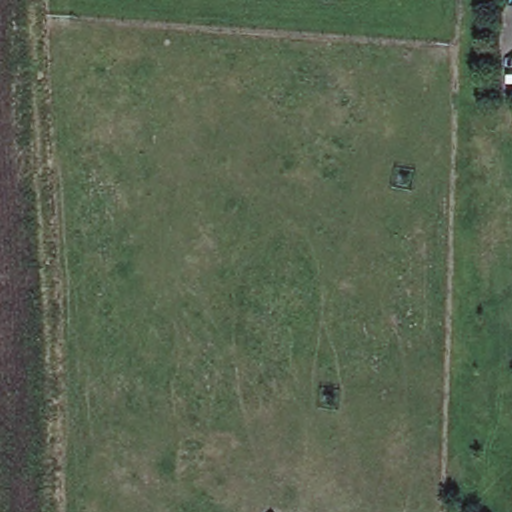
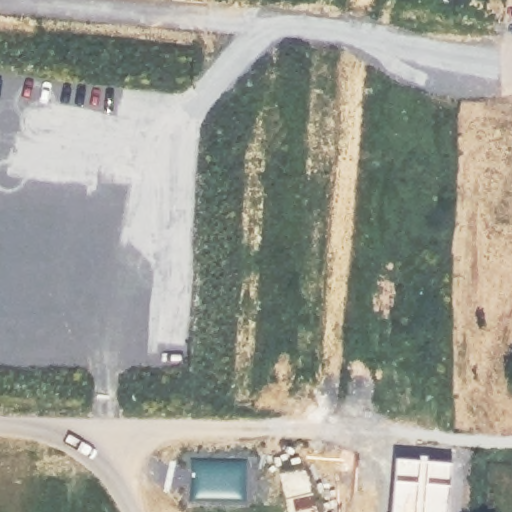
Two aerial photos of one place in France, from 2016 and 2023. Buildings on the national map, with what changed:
new [(451,465),(447,512),(391,512),(395,459),(451,465)]

